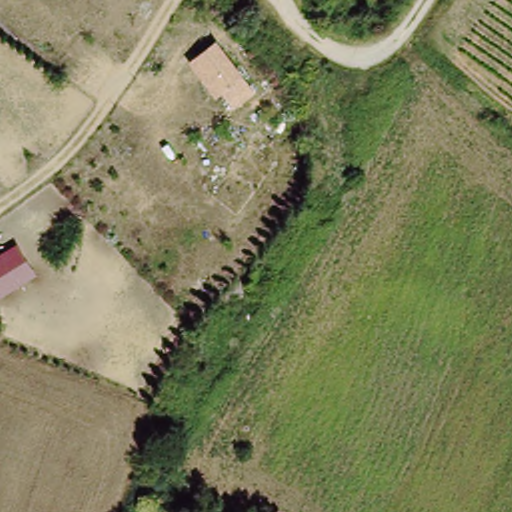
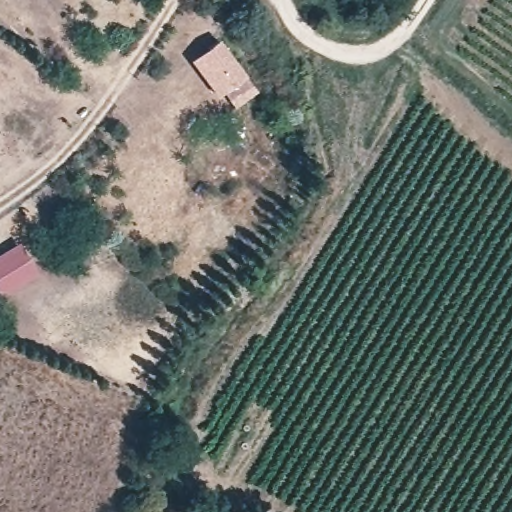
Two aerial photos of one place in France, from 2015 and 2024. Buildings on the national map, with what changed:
unchanged [(258,85),(233,107),(190,58),(215,37),(258,85)]
unchanged [(2,293),(0,291),(0,251),(15,240),(35,268),(2,293)]

